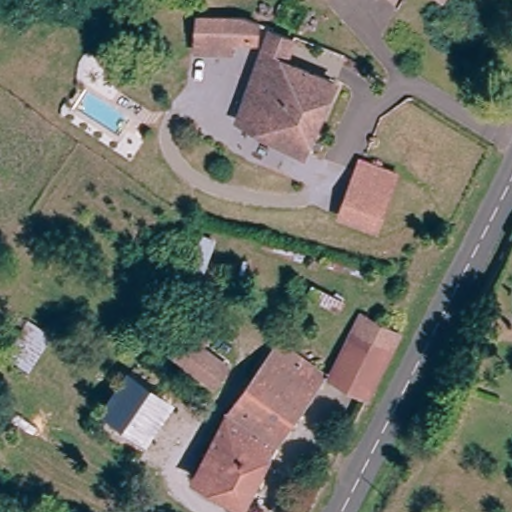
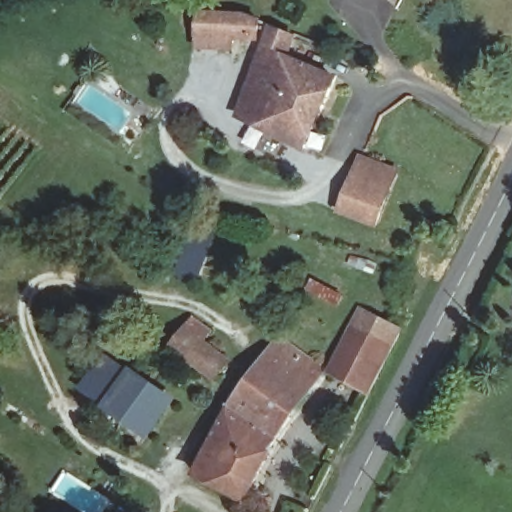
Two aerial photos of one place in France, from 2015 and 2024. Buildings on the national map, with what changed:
unchanged [(248,12),(262,21),(259,44),(236,43),(236,54),(197,50),(200,11),(248,12)]
unchanged [(237,116),(269,25),(297,36),(290,55),(346,80),(314,152),(237,116)]
unchanged [(346,204),(366,163),(400,180),(381,222),(346,204)]
unchanged [(348,334),(359,312),(399,332),(389,353),(348,334)]
unchanged [(32,316),(57,333),(34,369),(9,349),(32,316)]
unchanged [(185,327),(236,363),(217,386),(171,347),(185,327)]
unchanged [(327,373),(348,334),(389,353),(368,396),(327,373)]
unchanged [(196,477),(225,406),(269,341),(316,372),(243,503),(196,477)]
unchanged [(185,389),(140,459),(95,423),(139,354),(185,389)]

